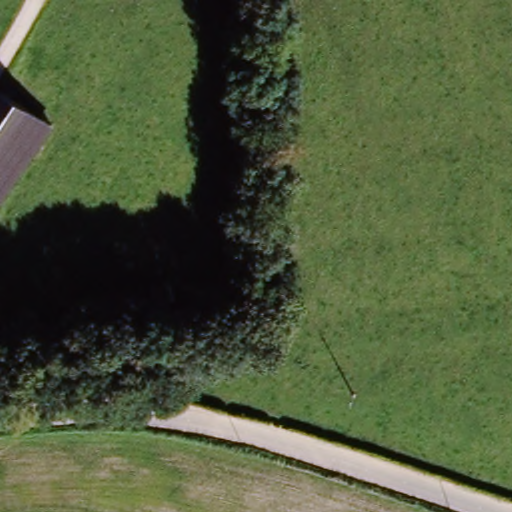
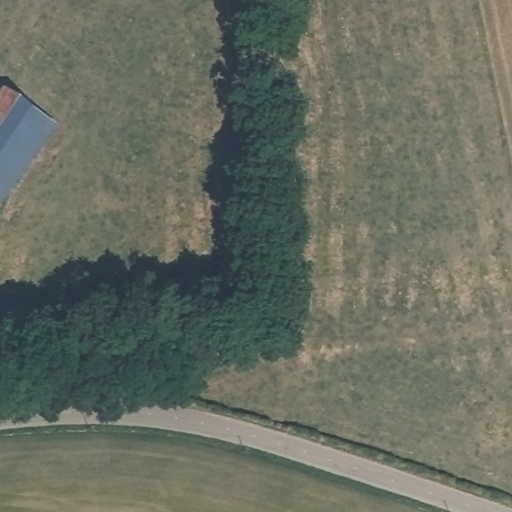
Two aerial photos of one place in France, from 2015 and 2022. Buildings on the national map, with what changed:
unchanged [(0,131),(0,97),(14,105),(0,131)]
unchanged [(0,188),(0,131),(14,105),(38,119),(0,188)]

